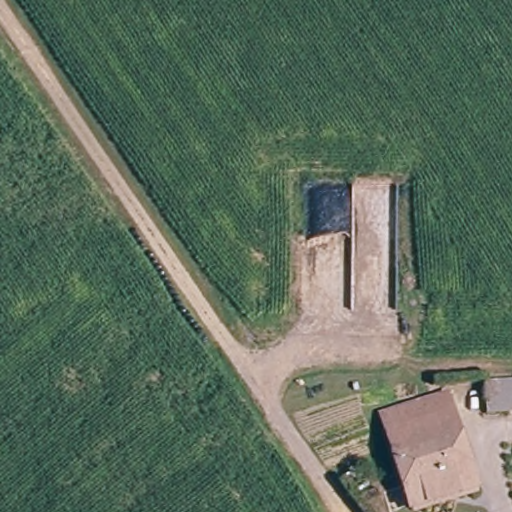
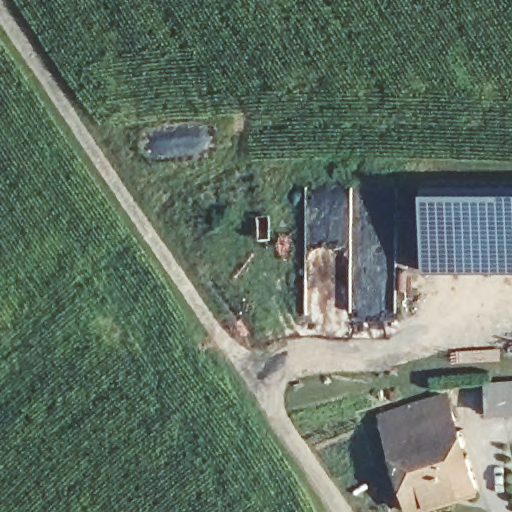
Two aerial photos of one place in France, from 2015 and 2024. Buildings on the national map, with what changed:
new [(512,189),(512,273),(424,273),(425,188),(512,189)]
unchanged [(477,387),(512,384),(512,421),(478,425),(477,387)]
unchanged [(418,512),(411,512),(376,425),(443,399),(479,486),(418,512)]

